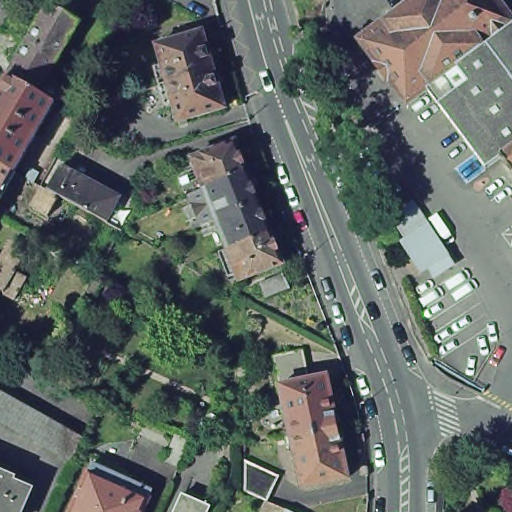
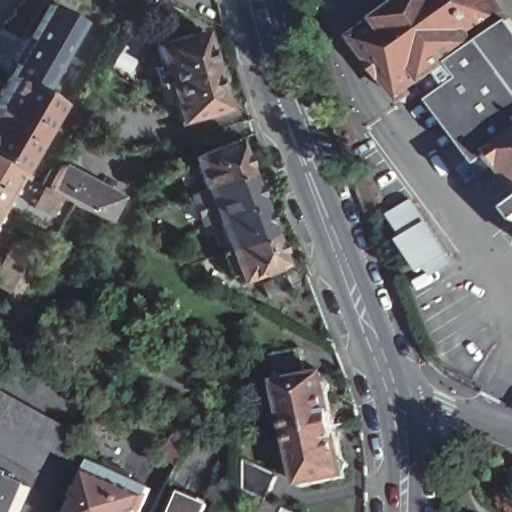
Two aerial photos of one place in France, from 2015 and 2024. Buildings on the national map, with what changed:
unchanged [(21,166),(20,167),(19,166),(0,156),(0,95),(13,71),(21,58),(17,55),(30,34),(33,36),(54,0),(57,0),(84,16),(63,53),(64,54),(51,76),(66,85),(60,97),(59,99),(20,165),(21,166)]
unchanged [(512,25),(427,90),(408,104),(390,80),(388,82),(376,66),(378,65),(360,41),(415,0),(497,0),(512,20),(512,25)]
unchanged [(486,169),(427,90),(512,25),(512,171),(501,157),(486,169)]
unchanged [(159,66),(167,64),(161,45),(205,31),(208,34),(219,69),(165,85),(159,66)]
unchanged [(220,74),(229,79),(225,87),(230,107),(183,121),(178,101),(170,104),(165,85),(219,69),(220,74)]
unchanged [(80,101),(103,115),(96,126),(72,113),(80,101)]
unchanged [(227,250),(215,219),(206,224),(195,192),(204,189),(192,158),(201,154),(218,147),(236,141),(247,171),(249,175),(255,174),(258,182),(253,185),(260,202),(271,232),(283,263),(240,280),(237,273),(228,276),(220,252),(227,250)]
unchanged [(0,203),(0,156),(19,166),(20,167),(0,203)]
unchanged [(105,220),(93,214),(86,210),(81,207),(73,203),(70,201),(60,196),(48,216),(33,207),(35,203),(28,199),(36,184),(40,185),(45,187),(48,190),(61,165),(82,176),(95,184),(107,190),(120,197),(106,221),(105,220)]
unchanged [(416,252),(406,237),(410,234),(403,223),(395,211),(419,196),(426,207),(434,219),(444,234),(454,250),(426,268),(416,252)]
unchanged [(15,298),(3,292),(6,286),(0,282),(0,264),(1,262),(10,247),(25,255),(17,270),(27,277),(15,298)]
unchanged [(285,272),(290,287),(266,297),(261,281),(285,272)]
unchanged [(333,385),(338,391),(336,400),(343,431),(296,441),(285,390),(280,361),(308,355),(313,384),(332,380),(333,385)]
unchanged [(10,390),(21,397),(34,404),(46,411),(58,418),(70,425),(83,431),(72,456),(57,448),(45,441),(33,434),(21,427),(9,420),(0,415),(0,385),(10,390)]
unchanged [(350,463),(355,470),(353,480),(353,483),(307,492),(296,441),(343,431),(350,463)]
unchanged [(166,458),(176,435),(189,440),(179,464),(166,458)]
unchanged [(5,465),(3,470),(40,486),(28,512),(0,512),(0,462),(5,465)]
unchanged [(147,512),(76,512),(98,463),(115,471),(117,466),(137,475),(135,480),(157,490),(147,512)]
unchanged [(245,479),(245,463),(280,480),(274,493),(268,505),(245,495),(245,479)]
unchanged [(187,494),(215,506),(212,512),(180,512),(187,494)]
unchanged [(270,507),(280,512),(267,512),(270,507)]

